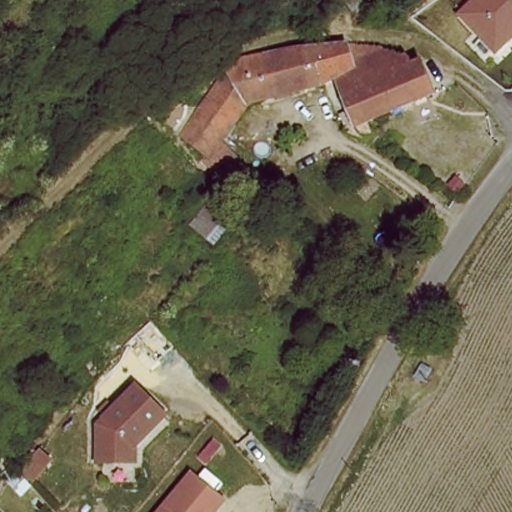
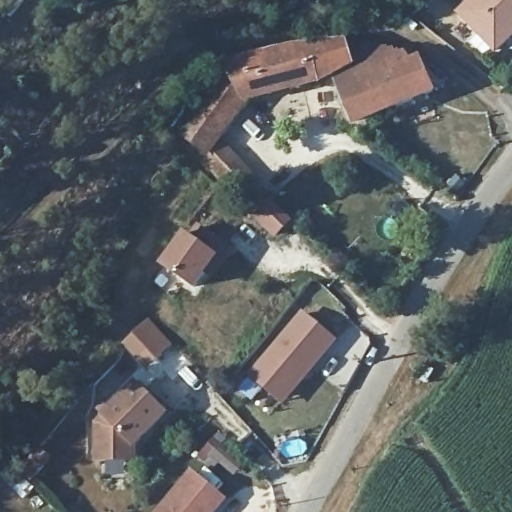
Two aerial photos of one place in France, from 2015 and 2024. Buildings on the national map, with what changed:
unchanged [(498,55),(457,14),(472,0),(512,0),(512,41),(498,55)]
unchanged [(225,69),(222,65),(305,52),(357,47),(384,51),(386,52),(338,81),(322,90),(319,86),(295,97),(246,103),(225,69)]
unchanged [(345,97),(338,81),(386,52),(413,65),(417,70),(345,97)]
unchanged [(423,68),(436,98),(370,122),(375,133),(362,140),(345,97),(417,70),(423,68)]
unchanged [(194,112),(225,69),(246,103),(220,140),(194,112)]
unchanged [(220,140),(254,178),(234,196),(213,173),(203,162),(210,155),(197,147),(177,136),(194,112),(220,140)]
new [(253,217),(270,201),(291,223),(275,239),(253,217)]
new [(212,281),(207,276),(195,292),(160,266),(183,232),(190,237),(198,226),(234,252),(212,281)]
new [(247,377),(303,313),(339,342),(283,407),(247,377)]
new [(132,335),(148,321),(170,347),(157,361),(147,370),(123,345),(132,335)]
unchanged [(160,416),(128,447),(128,462),(90,461),(91,423),(131,386),(160,416)]
unchanged [(223,510),(221,512),(165,512),(191,482),(223,510)]

